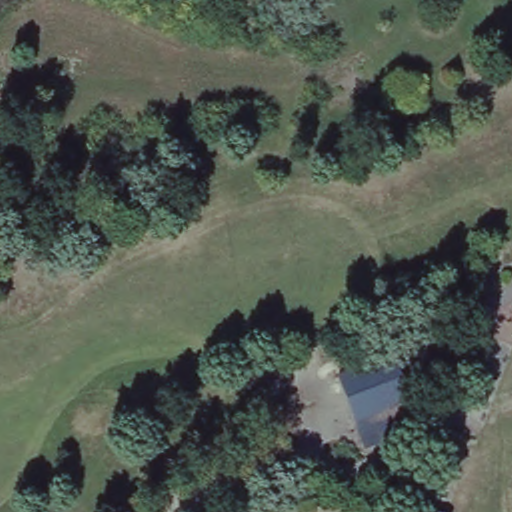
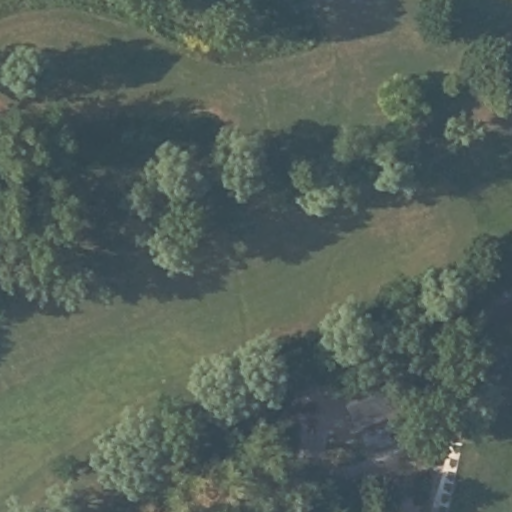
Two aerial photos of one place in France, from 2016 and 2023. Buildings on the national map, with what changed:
unchanged [(402,352),(419,398),(363,418),(347,371),(402,352)]

